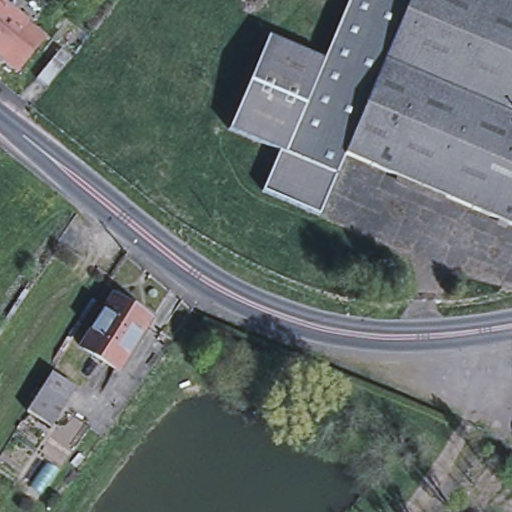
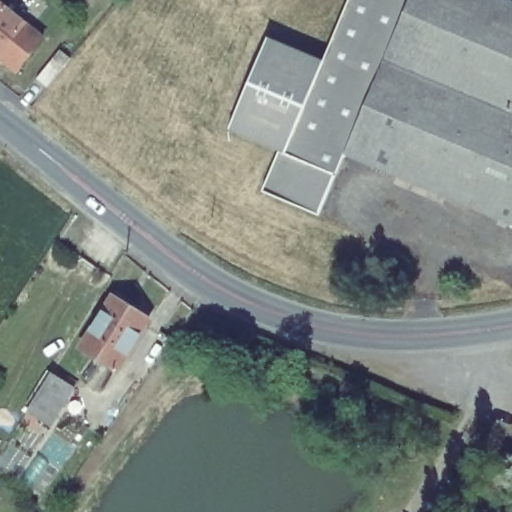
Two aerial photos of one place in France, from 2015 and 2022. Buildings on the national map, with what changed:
unchanged [(350,0),(501,0),(512,5),(512,226),(344,155),(318,215),(262,193),(280,152),(229,130),(268,39),(324,62),(350,0)]
unchanged [(17,72),(0,59),(0,5),(42,39),(17,72)]
unchanged [(70,59),(47,88),(37,79),(60,51),(70,59)]
unchanged [(118,372),(80,348),(109,300),(113,294),(130,305),(128,308),(150,322),(118,372)]
unchanged [(40,422),(26,412),(50,373),(74,389),(65,402),(49,427),(40,422)]

